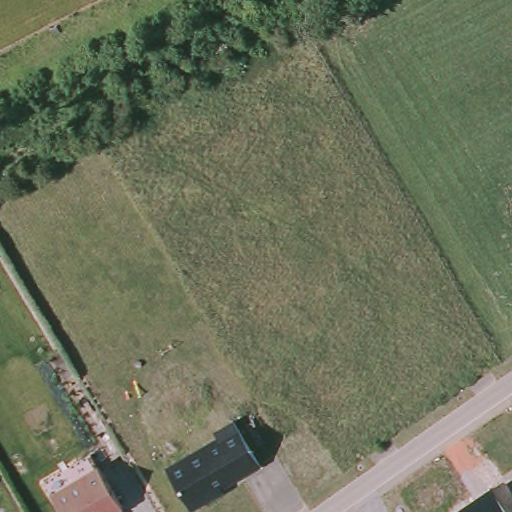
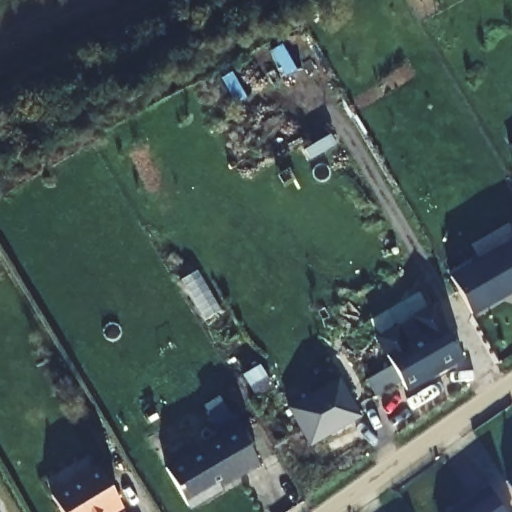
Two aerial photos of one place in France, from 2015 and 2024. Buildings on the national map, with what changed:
new [(512,240),(512,293),(473,315),(449,275),(512,240)]
new [(401,322),(410,339),(420,333),(410,317),(433,305),(463,358),(406,391),(374,336),(401,322)]
new [(340,378),(362,417),(309,447),(287,407),(340,378)]
unchanged [(261,462),(208,493),(207,500),(197,505),(190,504),(167,466),(220,436),(216,430),(236,419),(261,462)]
unchanged [(108,512),(63,512),(52,492),(99,465),(122,504),(108,512)]
new [(506,480),(512,476),(512,489),(506,480)]
new [(508,512),(453,512),(491,487),(508,512)]

